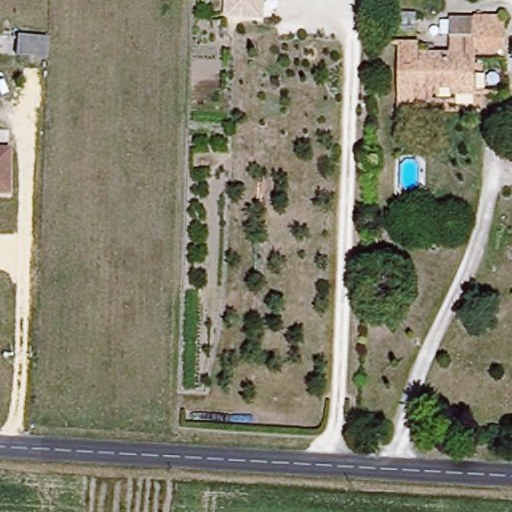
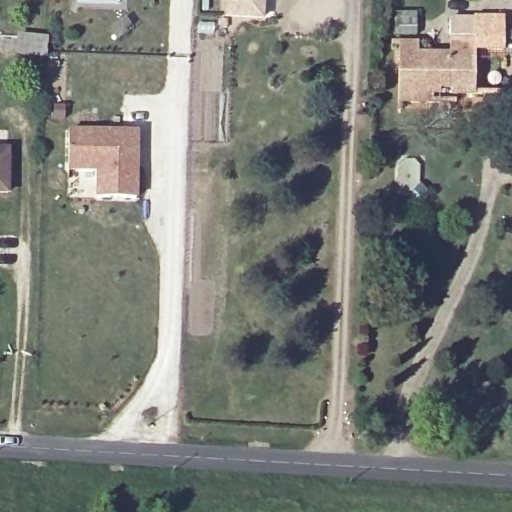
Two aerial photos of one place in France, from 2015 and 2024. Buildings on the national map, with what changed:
unchanged [(266,17),(230,16),(230,0),(263,0),(263,1),(266,1),(266,17)]
unchanged [(465,60),(466,37),(481,37),(482,18),(511,19),(510,50),(480,49),(480,93),(458,94),(458,87),(439,86),(438,104),(404,104),(405,42),(424,41),(424,53),(441,54),(441,61),(465,60)]
new [(71,131),(139,132),(138,198),(99,197),(100,170),(71,170),(71,131)]
unchanged [(0,153),(9,154),(8,196),(0,196),(0,153)]

